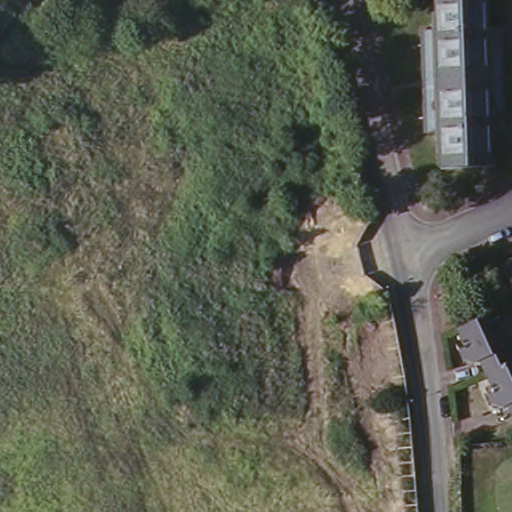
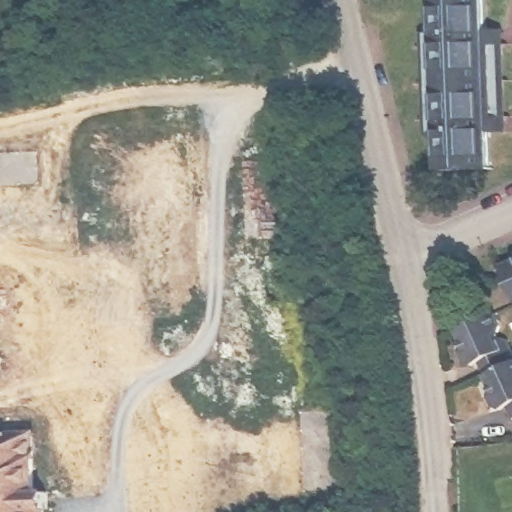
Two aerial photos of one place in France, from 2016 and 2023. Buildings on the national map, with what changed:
unchanged [(438,130),(423,130),(421,32),(436,31),(436,0),(483,0),(484,30),(499,30),(502,131),(487,131),(488,167),(438,169),(438,130)]
unchanged [(512,255),(512,293),(498,261),(512,255)]
unchanged [(496,335),(498,340),(502,339),(506,338),(508,341),(512,350),(512,361),(483,373),(477,361),(471,364),(461,362),(457,351),(463,348),(455,330),(495,312),(501,326),(496,335)]
unchanged [(497,407),(489,406),(484,395),(492,392),(483,373),(512,361),(512,416),(506,403),(497,407)]
new [(33,489),(46,488),(47,506),(41,506),(42,512),(0,512),(0,431),(31,430),(33,489)]

